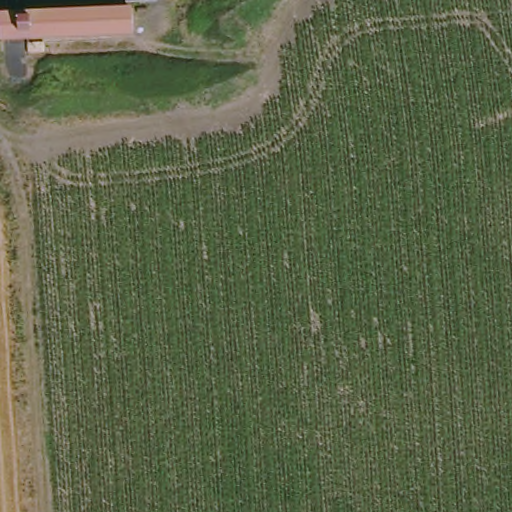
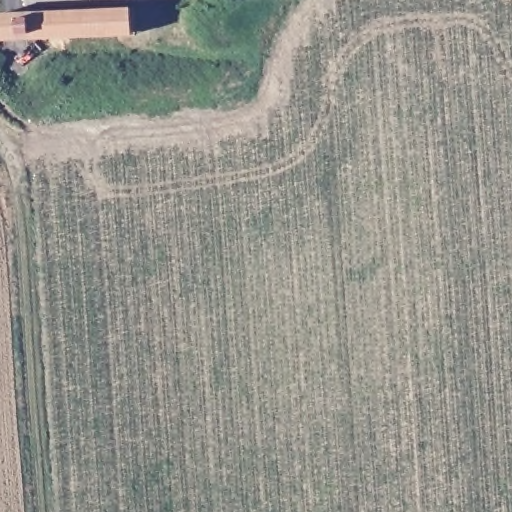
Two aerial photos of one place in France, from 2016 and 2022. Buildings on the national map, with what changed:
unchanged [(31,6),(31,0),(159,0),(159,5),(31,6)]
unchanged [(159,5),(159,0),(169,0),(159,5)]
unchanged [(5,42),(5,14),(7,14),(31,13),(137,13),(137,42),(30,42),(9,42),(5,42)]

